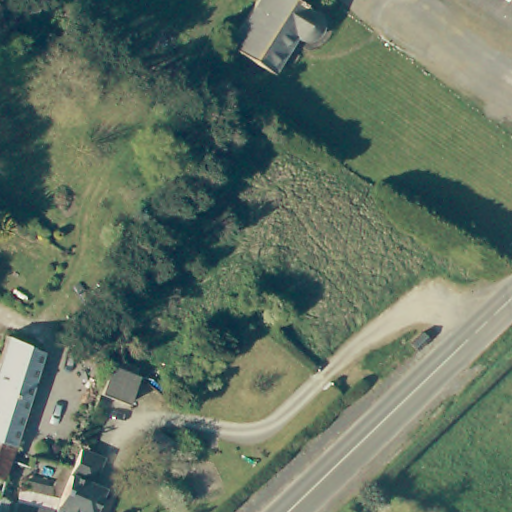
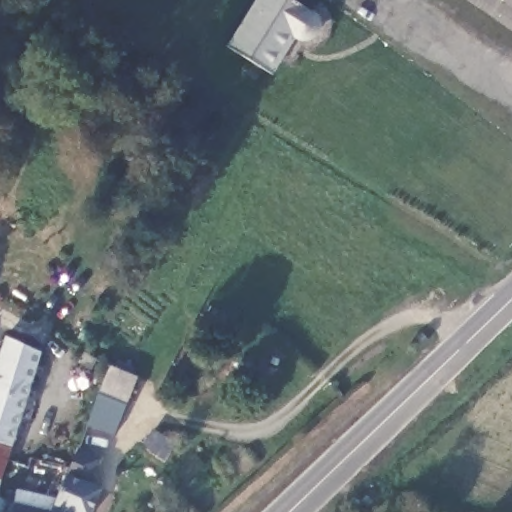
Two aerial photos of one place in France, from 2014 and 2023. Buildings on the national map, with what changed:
unchanged [(313,14),(315,17),(316,25),(314,30),(311,34),(306,37),(301,37),(295,36),(290,34),(260,70),(220,39),(251,0),(299,0),(307,6),(313,14)]
unchanged [(512,0),(512,19),(484,0),(512,0)]
unchanged [(0,447),(0,358),(3,346),(37,356),(6,449),(0,447)]
unchanged [(115,366),(137,376),(126,398),(124,402),(102,393),(106,386),(115,366)]
unchanged [(6,449),(0,473),(0,447),(6,449)]
unchanged [(63,483),(74,457),(94,466),(84,490),(97,493),(92,512),(53,512),(63,483)]
unchanged [(13,505),(12,509),(22,512),(0,512),(0,502),(13,505)]

